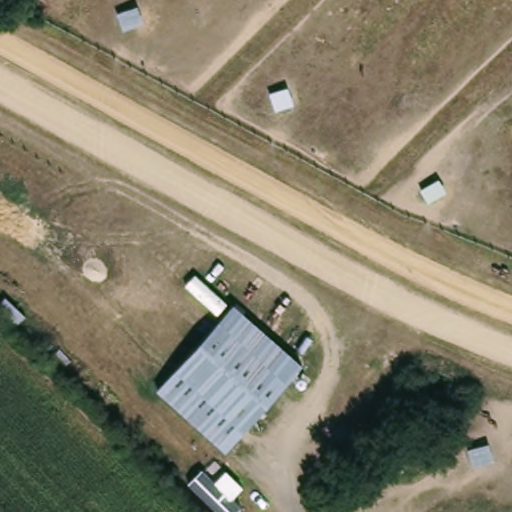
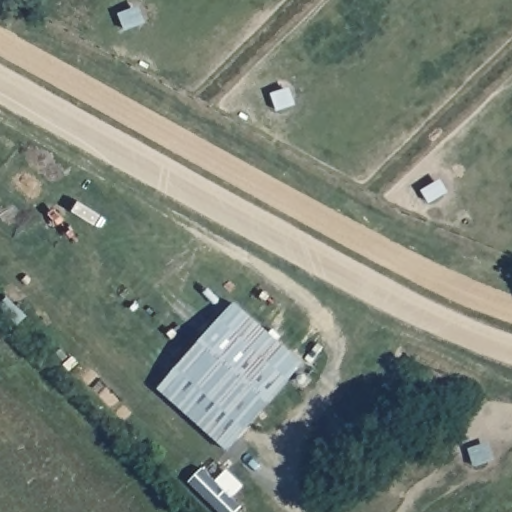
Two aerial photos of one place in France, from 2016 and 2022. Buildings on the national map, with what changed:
unchanged [(235,305),(306,369),(229,456),(158,393),(235,305)]

